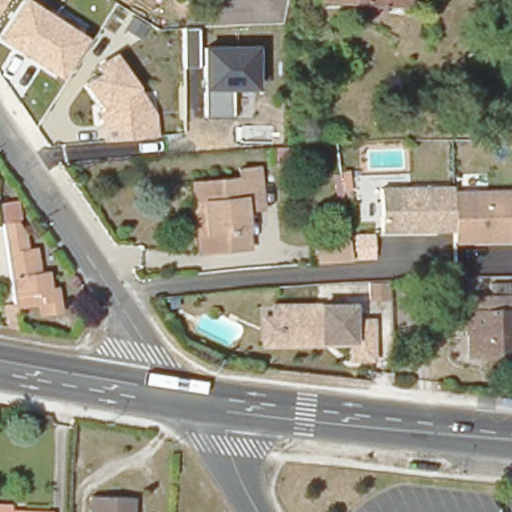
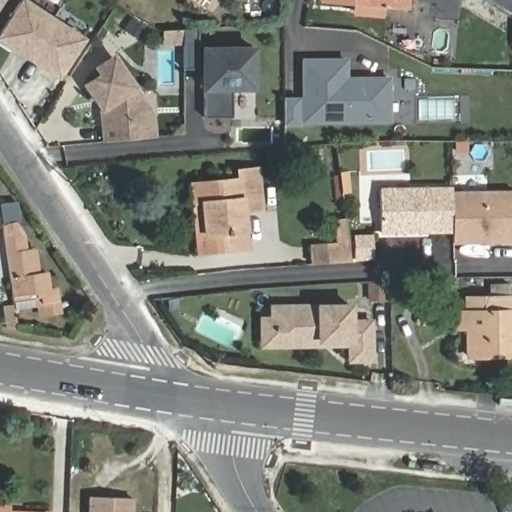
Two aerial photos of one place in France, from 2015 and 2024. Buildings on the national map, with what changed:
unchanged [(0,0),(3,0),(0,5),(0,0)]
unchanged [(0,40),(0,33),(21,0),(30,0),(87,38),(60,78),(0,40)]
demolished [(69,0),(95,0),(84,20),(63,9),(69,0)]
demolished [(107,0),(108,0),(108,1),(107,0)]
unchanged [(379,5),(379,15),(357,13),(357,3),(328,0),(410,0),(409,7),(379,5)]
demolished [(497,0),(512,0),(512,15),(498,16),(497,0)]
unchanged [(199,68),(185,68),(184,29),(199,28),(199,68)]
unchanged [(205,117),(204,90),(204,46),(258,46),(256,88),(230,89),(233,117),(205,117)]
unchanged [(158,136),(104,140),(101,112),(103,111),(84,83),(100,74),(95,66),(115,54),(139,86),(156,114),(158,136)]
new [(392,123),(308,124),(308,127),(288,128),(286,97),(300,96),(302,58),(348,56),(348,76),(392,76),(392,123)]
unchanged [(249,249),(209,252),(204,204),(195,205),(194,183),(240,179),(239,170),(259,168),(264,210),(244,212),(249,249)]
unchanged [(454,232),(381,233),(381,190),(453,189),(453,194),(453,216),(454,232)]
unchanged [(454,232),(453,216),(453,194),(512,193),(512,242),(454,243),(454,232)]
unchanged [(25,241),(27,256),(32,255),(35,280),(48,278),(50,294),(58,293),(59,307),(44,309),(43,302),(38,303),(37,299),(14,303),(1,217),(0,210),(19,207),(21,225),(18,229),(25,241)]
unchanged [(313,251),(339,250),(336,226),(347,225),(349,240),(349,249),(352,267),(344,267),(326,269),(314,269),(313,251)]
unchanged [(388,285),(387,300),(367,299),(368,285),(388,285)]
unchanged [(512,342),(512,365),(469,366),(468,337),(458,337),(458,323),(467,323),(467,309),(491,308),(491,294),(509,293),(510,308),(511,308),(512,342)]
unchanged [(273,307),(352,306),(351,322),(371,321),(371,333),(351,334),(351,340),(341,340),(341,344),(282,345),(262,345),(262,318),(273,318),(273,307)]
unchanged [(93,497),(133,498),(132,512),(93,512),(93,497)]
unchanged [(0,510),(9,511),(9,512),(0,512),(0,510)]

